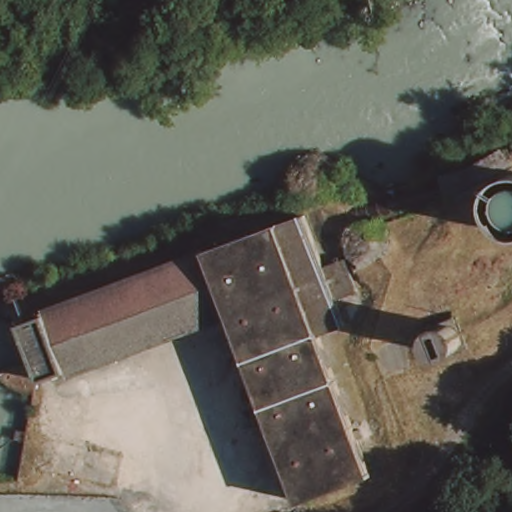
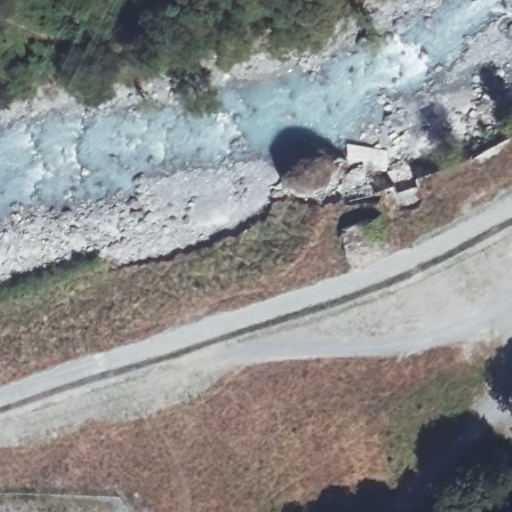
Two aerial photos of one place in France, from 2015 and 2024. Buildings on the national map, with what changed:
demolished [(338,246),(353,280),(333,287),(344,313),(317,323),(376,463),(304,491),(228,311),(51,368),(49,363),(25,371),(6,320),(28,312),(26,307),(300,210),(319,253),(338,246)]

